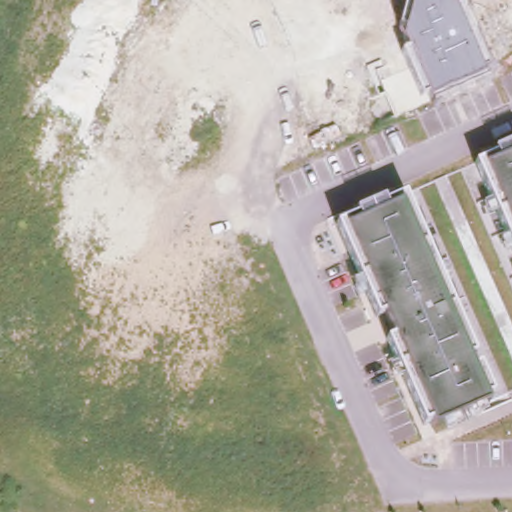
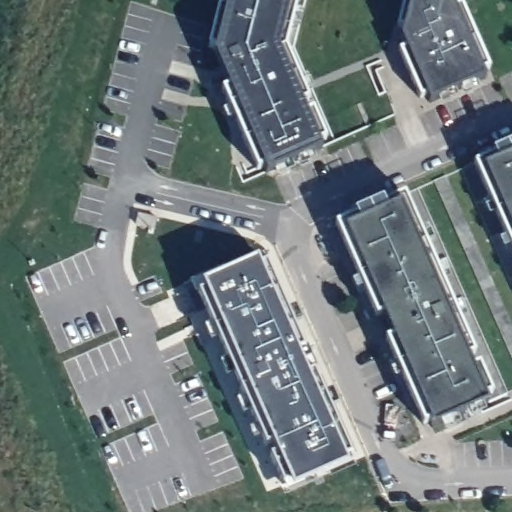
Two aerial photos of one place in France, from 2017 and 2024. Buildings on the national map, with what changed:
new [(223,46),(209,41),(220,0),(300,0),(287,43),(309,96),(302,99),(306,109),(313,106),(325,136),(319,139),(321,146),(264,168),(262,162),(255,164),(222,83),(228,81),(225,71),(215,47),(215,44),(223,46)]
unchanged [(451,0),(454,9),(461,8),(487,68),(480,70),(483,76),(487,80),(433,103),(430,101),(427,94),(421,97),(401,53),(408,50),(402,38),(398,27),(406,0),(451,0)]
unchanged [(512,148),(512,247),(475,164),(512,148)]
unchanged [(432,426),(429,418),(423,422),(387,339),(394,336),(383,313),(377,316),(337,224),(402,197),(472,354),(465,357),(470,370),(478,366),(488,393),(483,397),(485,402),(432,426)]
new [(345,455),(319,467),(322,473),(310,478),(307,472),(277,485),(263,455),(270,452),(267,443),(260,446),(192,293),(199,290),(197,284),(250,260),(252,266),(260,262),(298,348),(291,351),(301,373),(308,370),(345,455)]

